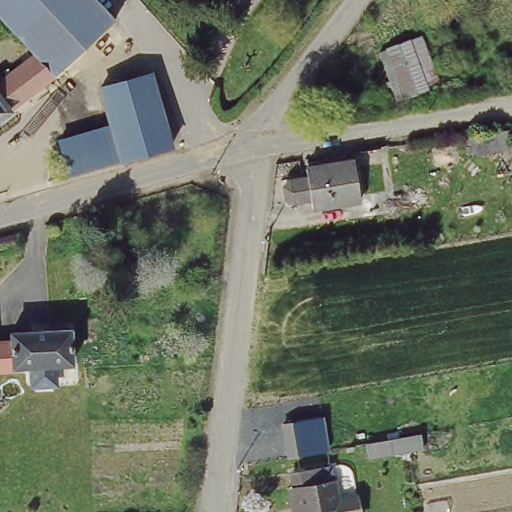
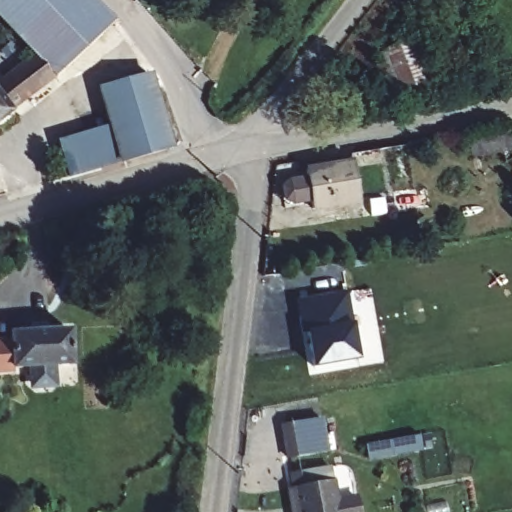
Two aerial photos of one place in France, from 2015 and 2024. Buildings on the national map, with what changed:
unchanged [(0,0),(101,0),(103,2),(70,24),(64,29),(36,48),(0,10),(0,0)]
unchanged [(10,74),(30,58),(40,53),(36,48),(64,29),(70,24),(103,2),(105,7),(117,18),(130,33),(95,56),(80,66),(87,75),(75,84),(67,74),(0,119),(0,71),(5,69),(10,74)]
unchanged [(446,75),(405,91),(385,46),(428,30),(446,75)]
unchanged [(64,179),(55,144),(109,129),(98,86),(152,71),(173,149),(119,163),(64,179)]
unchanged [(390,185),(383,148),(392,147),(405,144),(412,181),(390,185)]
unchanged [(352,158),(360,196),(310,207),(308,198),(295,200),(289,198),(286,194),(284,187),(288,182),(305,180),(304,167),(352,158)]
new [(296,300),(347,291),(359,360),(309,373),(296,300)]
unchanged [(11,330),(71,329),(75,367),(12,368),(12,372),(0,371),(0,340),(10,340),(11,330)]
unchanged [(282,426),(322,419),(327,454),(287,462),(282,426)]
unchanged [(355,447),(383,442),(410,437),(414,453),(387,457),(357,462),(355,447)]
unchanged [(330,501),(346,499),(348,512),(292,512),(285,475),(325,468),(330,501)]

